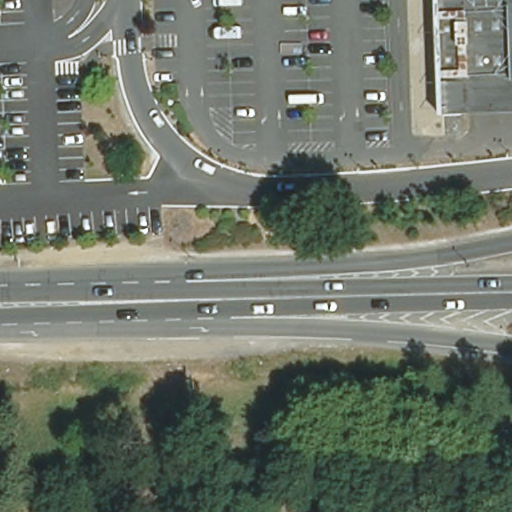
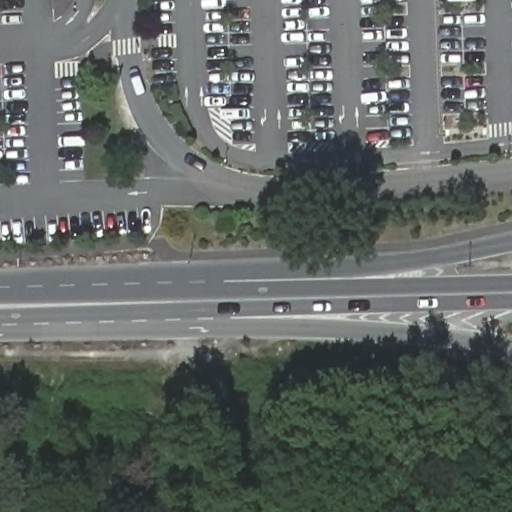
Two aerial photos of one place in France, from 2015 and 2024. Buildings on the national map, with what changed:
demolished [(431,108),(427,0),(512,0),(512,111),(439,113),(431,108)]

